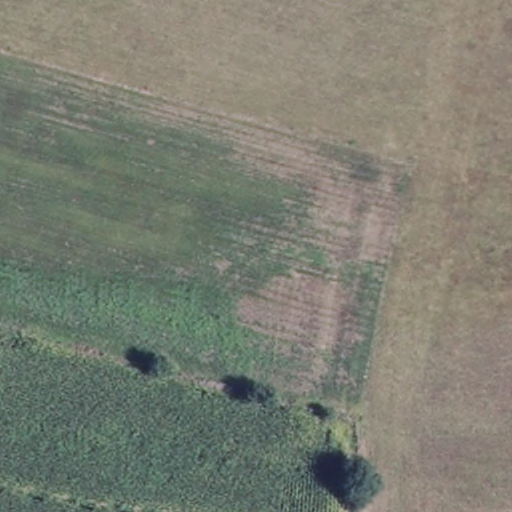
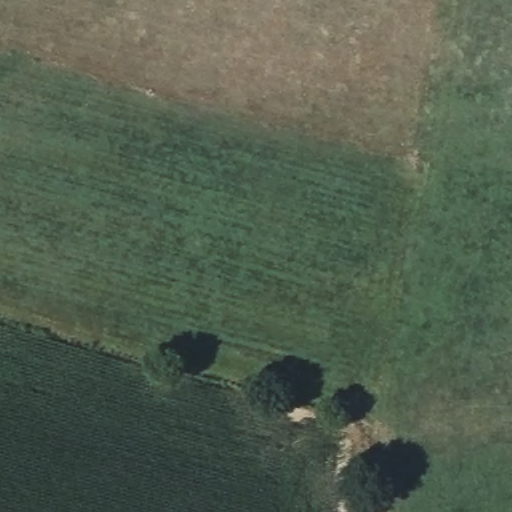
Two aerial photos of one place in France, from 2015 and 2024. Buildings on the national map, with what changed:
[]

